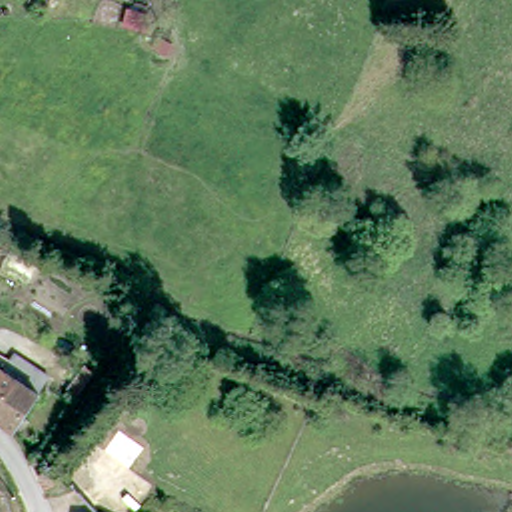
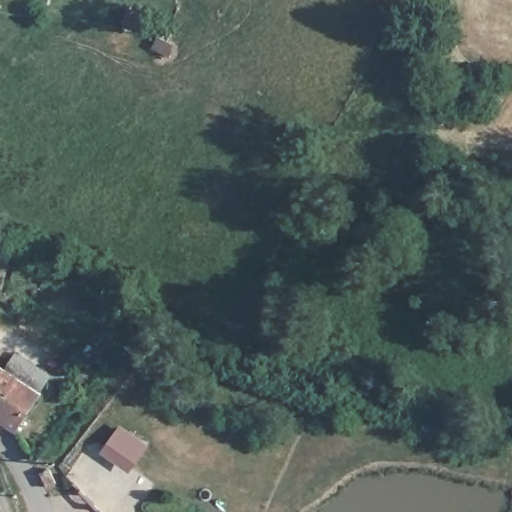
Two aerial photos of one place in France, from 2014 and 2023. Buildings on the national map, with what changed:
unchanged [(43,396),(18,433),(0,421),(0,368),(43,396)]
new [(120,424),(149,444),(130,471),(102,451),(120,424)]
new [(13,512),(0,512),(0,492),(5,490),(13,512)]

